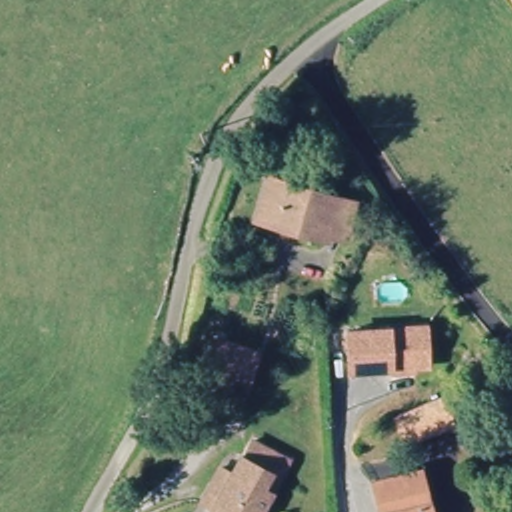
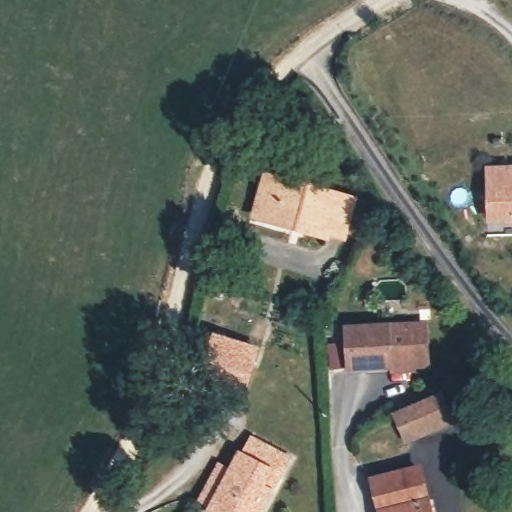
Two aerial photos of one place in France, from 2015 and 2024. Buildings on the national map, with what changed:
new [(512,223),(489,225),(486,166),(512,165),(512,223)]
unchanged [(342,236),(332,232),(328,241),(275,224),(272,223),(260,219),(271,187),(272,185),(275,176),(290,181),(354,201),(342,236)]
unchanged [(426,320),(431,359),(418,361),(353,372),(348,332),(414,322),(426,320)]
unchanged [(190,374),(204,333),(249,347),(234,387),(190,374)]
unchanged [(396,415),(438,395),(439,399),(448,421),(407,441),(398,421),(396,415)]
unchanged [(289,460),(280,479),(272,494),(258,491),(271,498),(264,512),(212,512),(201,507),(219,467),(232,474),(247,442),(271,453),(289,460)]
unchanged [(373,482),(413,471),(420,469),(430,512),(380,512),(373,482)]

